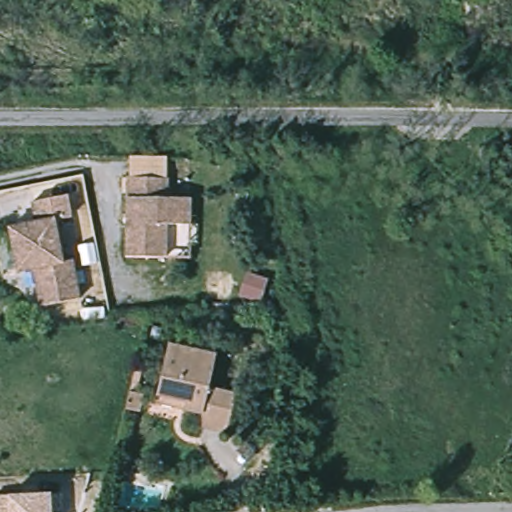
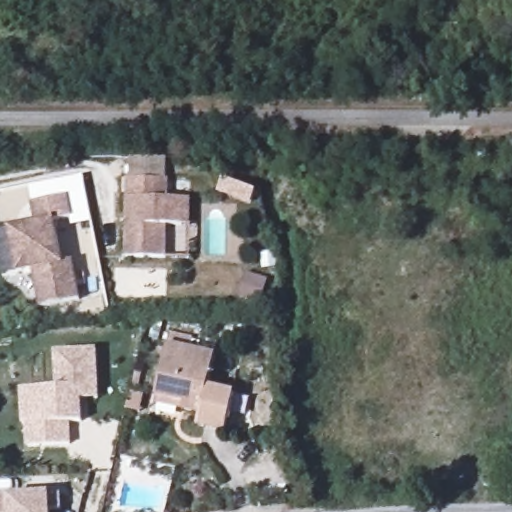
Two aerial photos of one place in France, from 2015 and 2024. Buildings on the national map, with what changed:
unchanged [(164,184),(164,204),(180,204),(180,231),(164,231),(164,264),(125,264),(124,185),(164,184)]
unchanged [(45,306),(38,268),(22,271),(13,228),(39,222),(34,201),(68,194),(73,216),(57,219),(66,260),(75,258),(84,297),(45,306)]
unchanged [(216,351),(209,384),(236,390),(228,427),(199,421),(203,409),(184,405),(186,397),(156,390),(167,341),(216,351)]
new [(54,388),(53,351),(97,350),(99,400),(81,401),(83,422),(68,423),(69,444),(26,448),(24,425),(20,425),(19,389),(54,388)]
unchanged [(49,494),(60,497),(60,511),(51,509),(51,512),(0,512),(0,500),(8,498),(49,494)]

